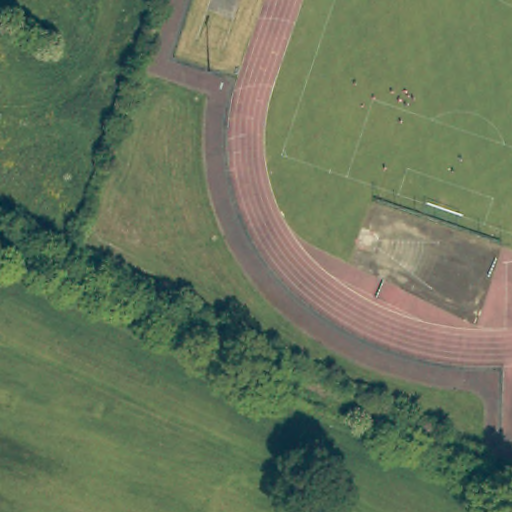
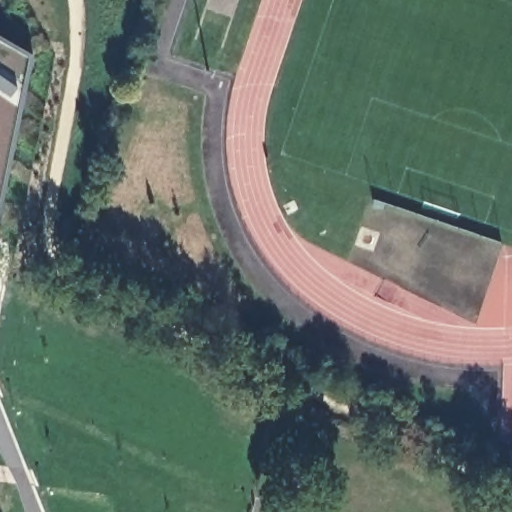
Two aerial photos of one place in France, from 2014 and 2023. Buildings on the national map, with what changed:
new [(0,39),(32,58),(0,212),(0,39)]

